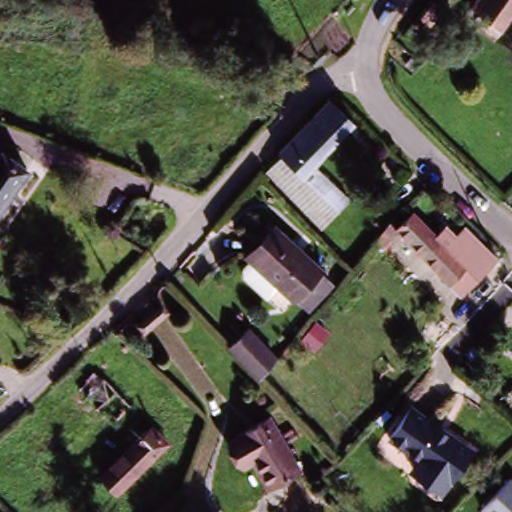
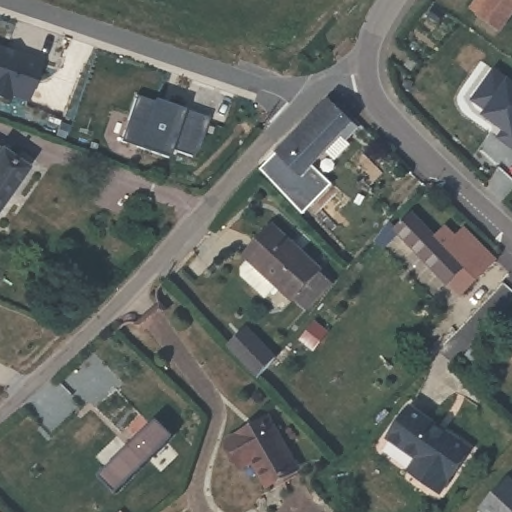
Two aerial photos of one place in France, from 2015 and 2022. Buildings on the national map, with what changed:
unchanged [(483,9),(489,0),(512,0),(512,11),(504,23),(483,9)]
new [(25,99),(8,94),(6,99),(0,98),(0,49),(37,62),(25,99)]
new [(474,100),(495,71),(512,83),(512,147),(500,138),(506,130),(486,115),(489,111),(474,100)]
new [(135,96),(207,120),(198,148),(190,157),(170,150),(167,158),(119,142),(135,96)]
unchanged [(353,134),(314,174),(337,194),(335,197),(343,204),(317,229),(270,175),(329,110),(353,134)]
unchanged [(0,221),(0,156),(32,178),(0,221)]
unchanged [(441,253),(459,235),(490,266),(457,300),(394,239),(377,254),(373,249),(390,234),(405,219),(441,253)]
unchanged [(307,308),(296,297),(294,299),(277,283),(267,294),(245,274),(245,268),(252,259),(247,255),(274,227),(280,232),(322,270),(320,272),(332,284),(307,308)]
unchanged [(244,329),(270,356),(272,357),(253,376),(225,347),(244,329)]
unchanged [(172,443),(122,491),(107,475),(138,444),(91,396),(109,379),(172,443)]
unchanged [(470,447),(442,488),(411,466),(417,456),(387,435),(409,404),(470,447)]
unchanged [(254,457),(245,461),(242,456),(230,434),(269,413),(299,464),(275,478),(269,482),(254,457)]
unchanged [(512,487),(512,512),(480,512),(507,483),(512,487)]

